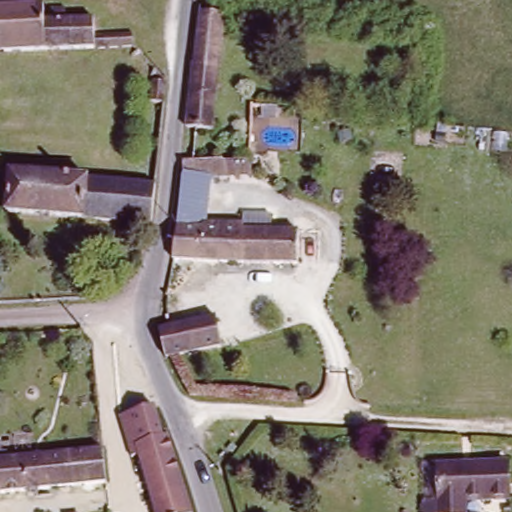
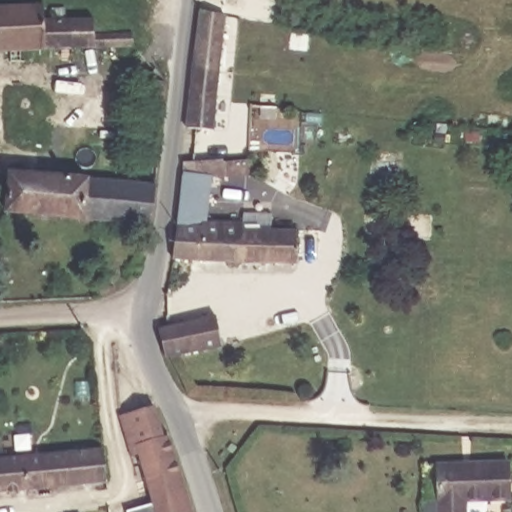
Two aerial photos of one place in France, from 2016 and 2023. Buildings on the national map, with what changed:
unchanged [(47,17),(97,15),(97,30),(136,29),(136,45),(0,52),(0,4),(47,1),(47,17)]
unchanged [(227,15),(216,130),(190,128),(202,13),(227,15)]
unchanged [(147,102),(150,80),(165,82),(162,104),(147,102)]
unchanged [(185,175),(187,160),(254,160),(254,175),(204,175),(185,175)]
unchanged [(3,209),(7,184),(8,167),(153,179),(148,220),(3,209)]
unchanged [(202,227),(180,227),(185,175),(204,175),(202,221),(202,227)]
unchanged [(173,273),(177,260),(180,227),(202,227),(202,221),(248,222),(247,229),(302,230),(300,263),(195,260),(193,274),(173,273)]
unchanged [(172,353),(165,332),(180,329),(222,320),(227,342),(172,353)]
unchanged [(138,445),(137,443),(130,445),(119,415),(152,405),(163,435),(168,433),(192,512),(157,512),(138,445)]
unchanged [(0,457),(106,446),(109,480),(0,491),(0,457)]
unchanged [(428,503),(442,502),(440,462),(512,459),(512,497),(470,499),(470,512),(429,512),(428,503)]

